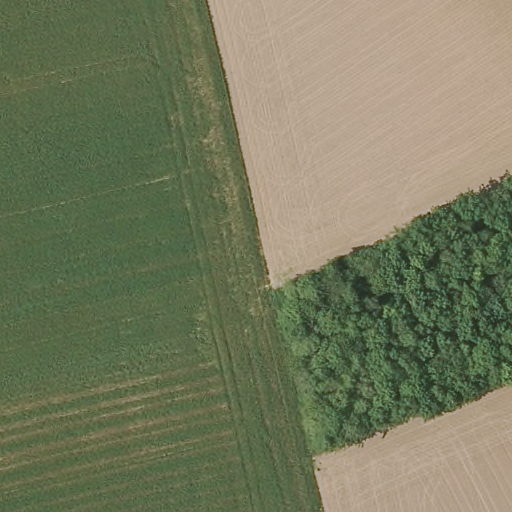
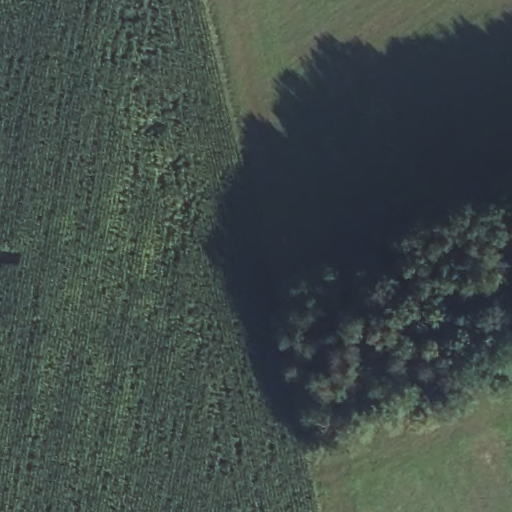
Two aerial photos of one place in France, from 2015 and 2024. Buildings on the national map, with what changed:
unchanged [(332,302),(322,288),(363,260),(375,277),(332,302)]

